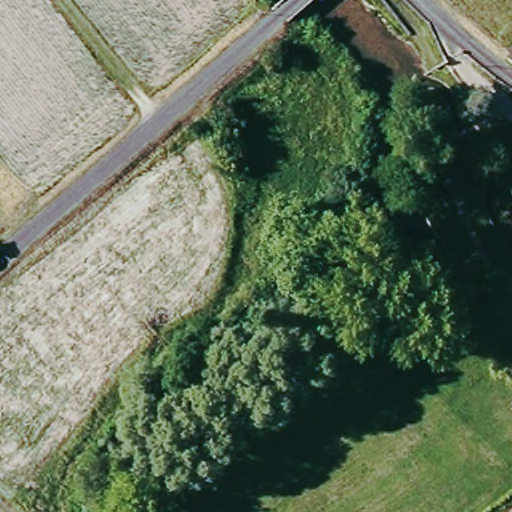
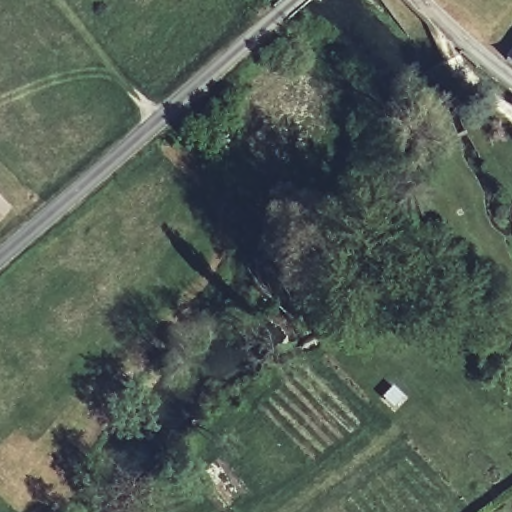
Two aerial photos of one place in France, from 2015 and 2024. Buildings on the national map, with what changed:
unchanged [(507,63),(512,56),(512,67),(507,63)]

